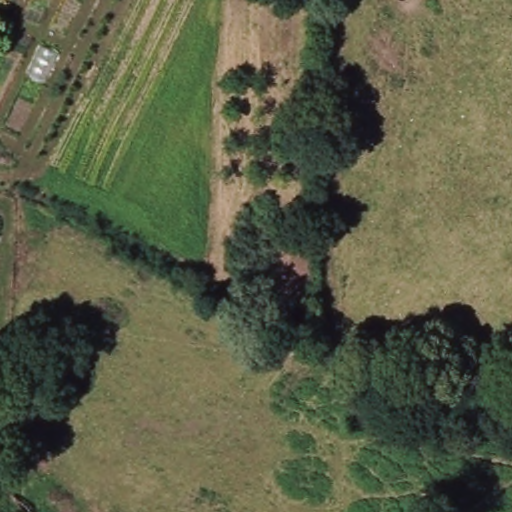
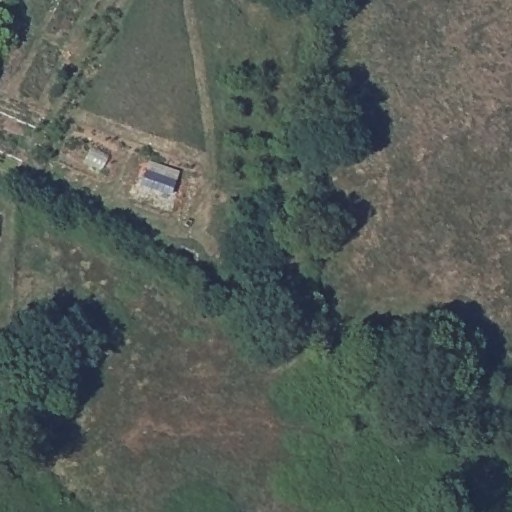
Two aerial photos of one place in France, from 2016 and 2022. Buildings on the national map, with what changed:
[]

